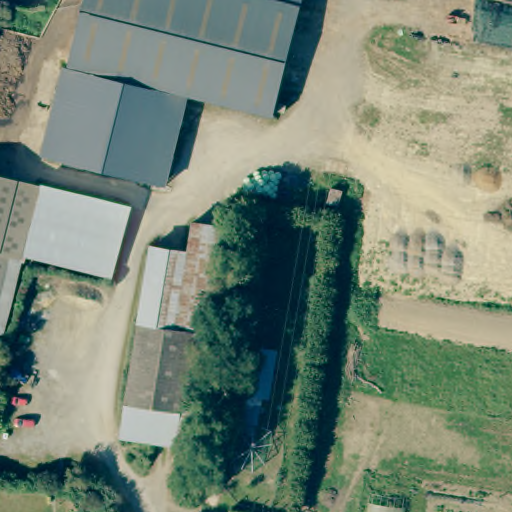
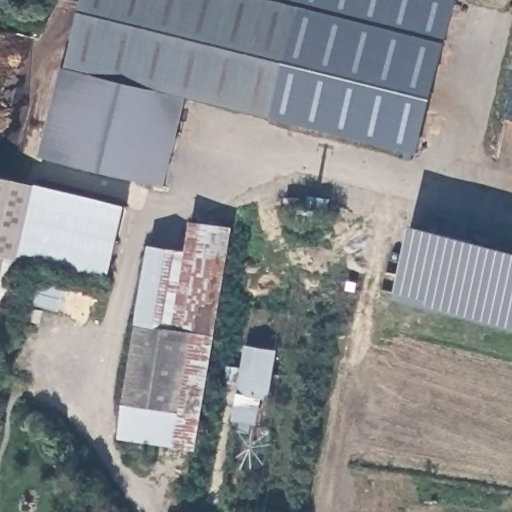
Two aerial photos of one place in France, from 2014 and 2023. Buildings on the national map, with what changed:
unchanged [(273,114),(184,94),(68,67),(83,0),(300,0),(299,2),(273,114)]
new [(300,0),(459,0),(421,153),(273,114),(299,2),(300,0)]
unchanged [(184,94),(163,186),(47,159),(68,67),(184,94)]
unchanged [(127,207),(111,276),(22,256),(20,260),(20,264),(20,265),(19,267),(3,336),(0,335),(0,179),(127,207)]
unchanged [(148,247),(183,252),(188,223),(225,229),(227,229),(194,448),(118,436),(148,247)]
new [(414,224),(512,250),(512,329),(396,299),(414,224)]
unchanged [(267,398),(257,396),(256,417),(230,414),(242,342),(273,347),(267,398)]

